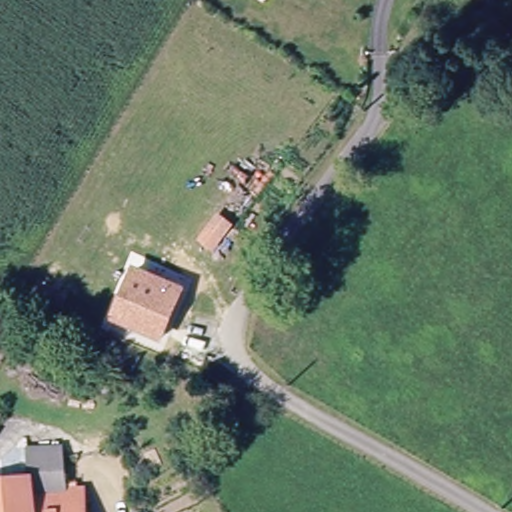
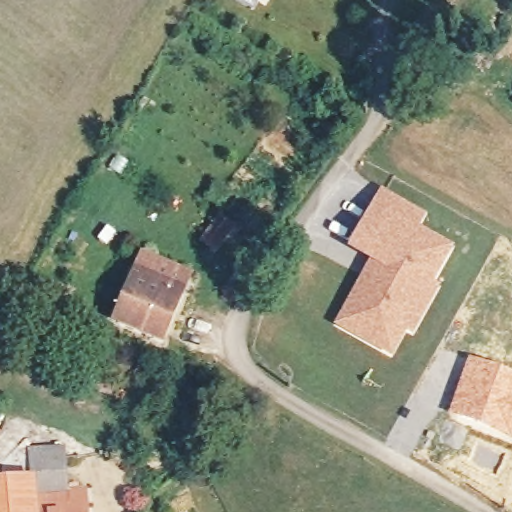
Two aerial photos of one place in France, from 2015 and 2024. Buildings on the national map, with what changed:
new [(354,247),(383,194),(412,211),(421,216),(414,229),(448,248),(429,283),(428,284),(424,282),(411,285),(379,344),(341,323),(366,278),(377,259),(354,247)]
unchanged [(118,317),(136,270),(145,252),(189,272),(183,288),(164,338),(118,317)]
new [(411,285),(424,282),(428,284),(429,283),(436,288),(412,329),(405,325),(391,351),(379,344),(411,285)]
new [(512,374),(512,438),(446,413),(467,357),(512,374)]
unchanged [(4,432),(0,440),(0,430),(4,432)]
unchanged [(73,488),(73,503),(57,505),(56,490),(20,493),(11,478),(42,475),(39,444),(74,440),(77,487),(73,488)]
unchanged [(56,490),(57,505),(73,503),(73,488),(77,487),(92,486),(94,512),(0,512),(0,480),(11,478),(20,493),(56,490)]

